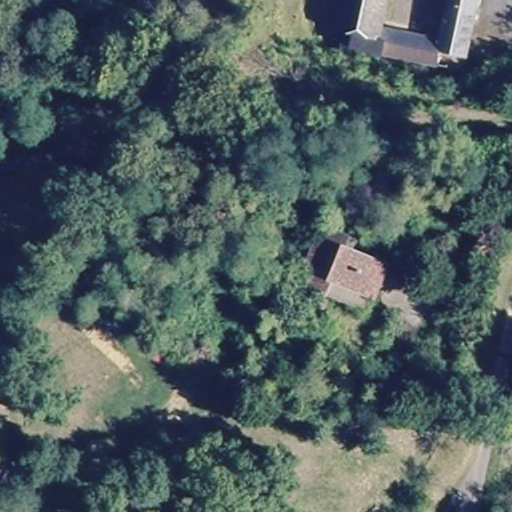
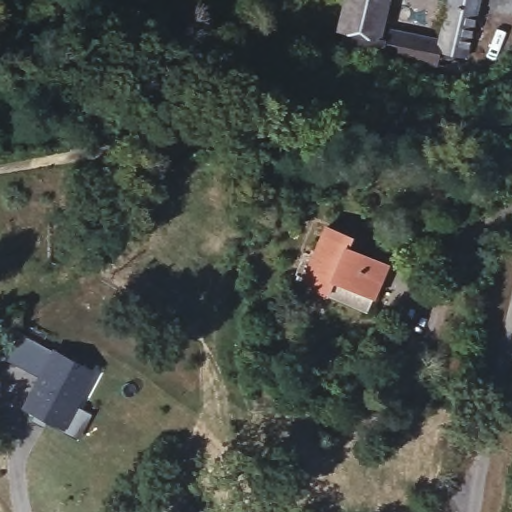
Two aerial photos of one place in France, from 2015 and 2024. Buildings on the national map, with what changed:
unchanged [(332,36),(340,0),(385,0),(379,27),(432,40),(443,0),(474,0),(457,67),(431,61),(428,74),(341,54),(345,40),(332,36)]
unchanged [(322,225),(356,234),(351,250),(382,258),(369,306),(303,287),(322,225)]
new [(0,358),(15,331),(63,357),(49,380),(0,358)]
new [(63,357),(100,381),(65,434),(29,410),(63,357)]

